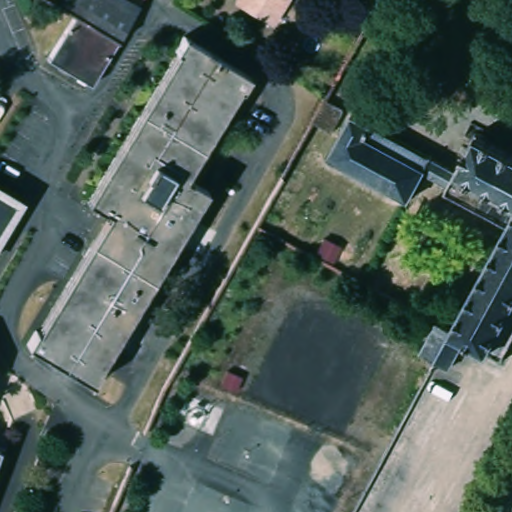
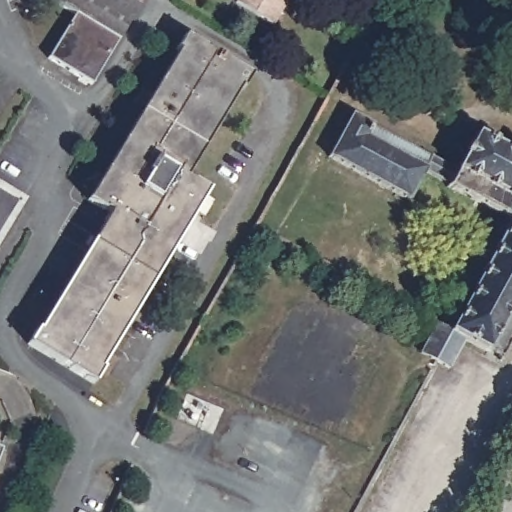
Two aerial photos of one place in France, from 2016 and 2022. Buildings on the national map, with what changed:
unchanged [(137,5),(91,80),(48,55),(74,13),(54,0),(129,0),(137,5)]
unchanged [(278,25),(239,2),(240,0),(292,0),(278,25)]
unchanged [(40,326),(41,327),(114,213),(91,198),(185,50),(182,47),(190,34),(256,72),(247,86),(245,85),(187,176),(211,191),(102,366),(104,367),(95,381),(30,342),(40,326)]
unchanged [(348,111),(336,132),(334,136),(315,125),(328,101),(348,111)]
unchanged [(451,187),(427,174),(412,201),(332,157),(345,136),(356,116),(460,172),(480,135),(512,152),(512,222),(450,189),(451,187)]
unchanged [(26,197),(0,239),(0,182),(26,197)]
unchanged [(454,370),(439,362),(425,354),(440,325),(454,333),(512,225),(512,313),(490,353),(469,341),(454,370)]
unchanged [(490,353),(512,313),(512,352),(507,362),(490,353)]
unchanged [(6,445),(0,460),(0,443),(6,445)]

